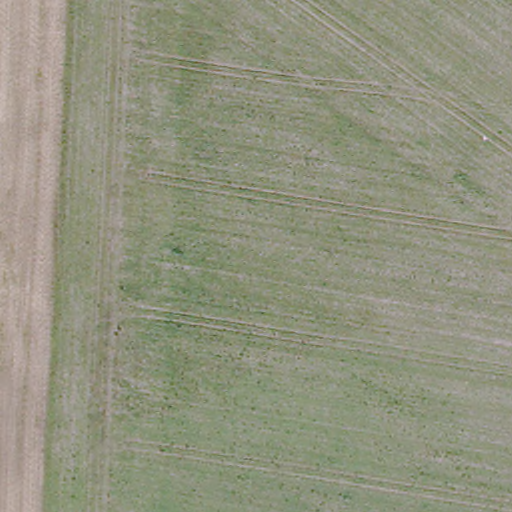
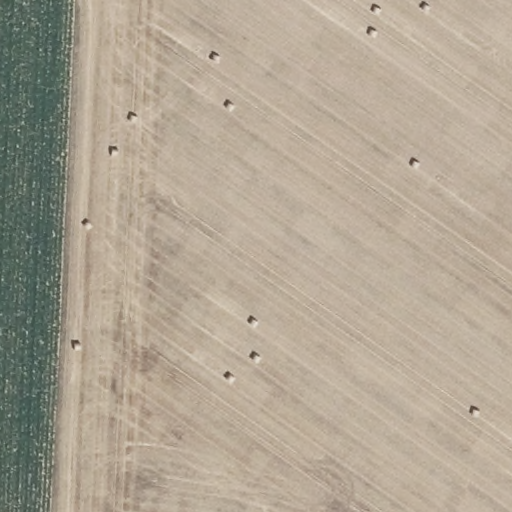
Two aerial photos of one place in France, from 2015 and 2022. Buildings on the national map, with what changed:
[]

